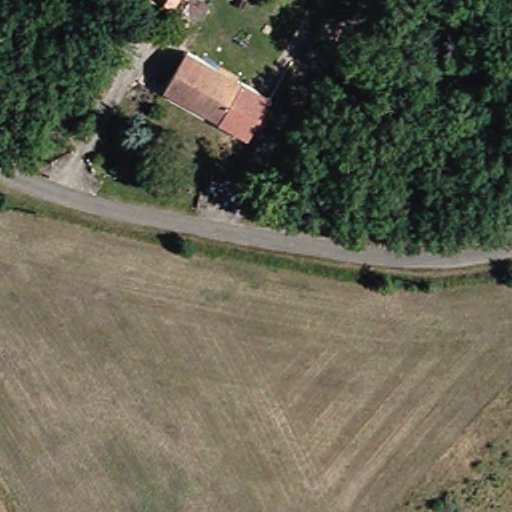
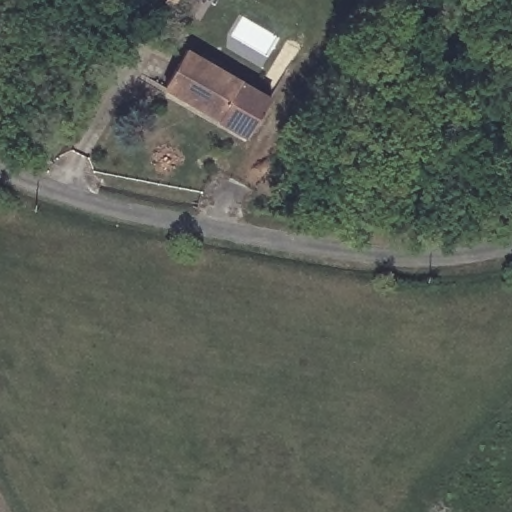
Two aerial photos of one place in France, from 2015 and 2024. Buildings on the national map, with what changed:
unchanged [(171,81),(191,44),(247,75),(276,91),(255,130),(226,114),(227,112),(204,100),(171,81)]

